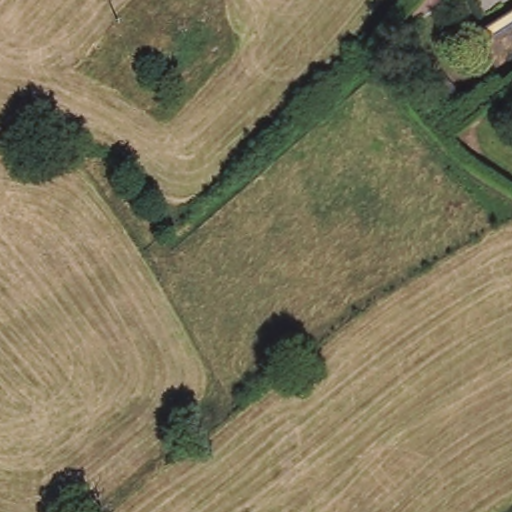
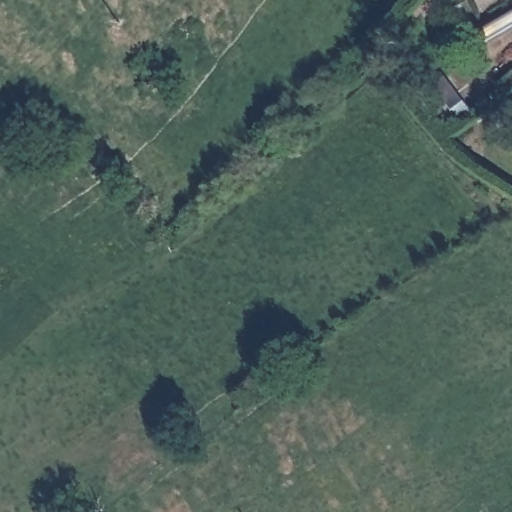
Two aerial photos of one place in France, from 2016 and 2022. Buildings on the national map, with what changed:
[]

